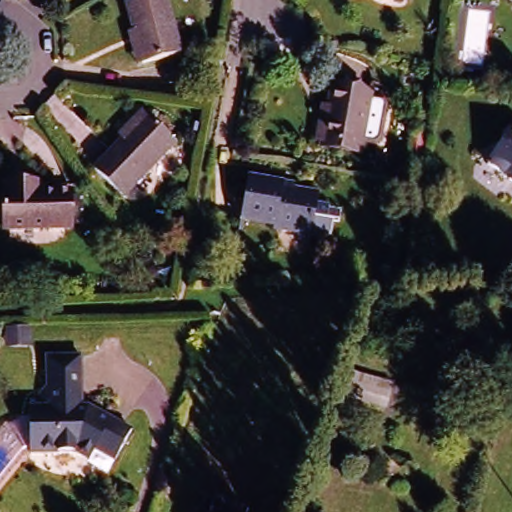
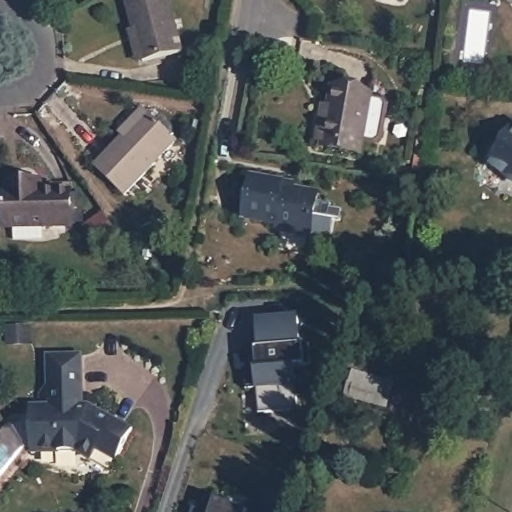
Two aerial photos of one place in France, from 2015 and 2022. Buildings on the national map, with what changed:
unchanged [(131,36),(136,35),(129,5),(149,0),(169,0),(184,55),(144,66),(139,67),(131,36)]
unchanged [(402,4),(378,0),(402,0),(402,4)]
unchanged [(320,151),(328,111),(333,113),(337,92),(375,98),(366,152),(365,158),(320,151)]
unchanged [(122,194),(92,165),(121,134),(117,131),(139,108),(143,112),(173,139),(122,194)]
unchanged [(512,182),(511,182),(509,181),(508,180),(505,179),(502,177),(483,162),(497,144),(497,138),(510,122),(512,123),(512,182)]
unchanged [(69,224),(2,224),(2,190),(5,190),(5,179),(30,180),(39,180),(38,190),(69,190),(69,224)]
unchanged [(330,215),(342,217),(340,227),(334,226),(332,238),(326,244),(311,241),(281,236),(276,228),(244,222),(252,180),(295,189),(294,195),(318,199),(317,207),(330,210),(330,215)]
new [(257,372),(256,362),(250,363),(249,352),(260,351),(258,324),(299,321),(301,348),(310,348),(311,369),(295,370),(297,414),(259,417),(257,392),(247,393),(245,373),(257,372)]
unchanged [(30,330),(30,341),(30,346),(29,346),(12,346),(12,331),(30,330)]
unchanged [(82,389),(82,405),(88,405),(133,430),(116,461),(96,450),(90,460),(77,453),(32,454),(30,407),(40,407),(40,397),(47,396),(47,356),(81,355),(82,389)]
unchanged [(395,384),(389,407),(350,396),(357,373),(395,384)]
new [(200,511),(205,497),(246,512),(192,512),(193,509),(200,511)]

